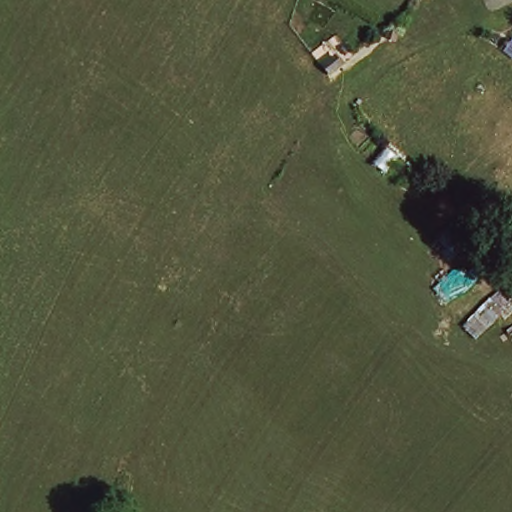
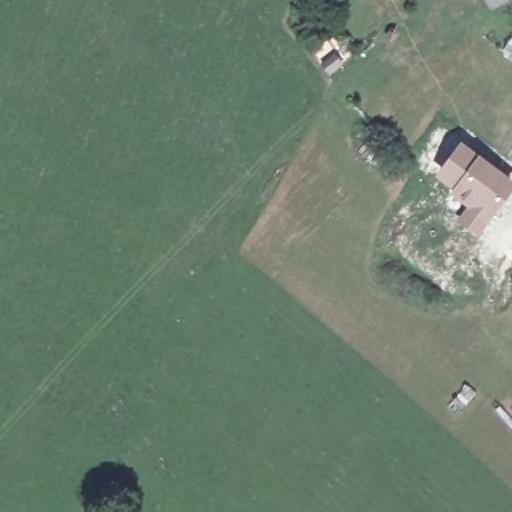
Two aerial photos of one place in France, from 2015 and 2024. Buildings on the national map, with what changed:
new [(512,180),(512,191),(477,237),(455,221),(465,207),(433,176),(460,141),(512,180)]

